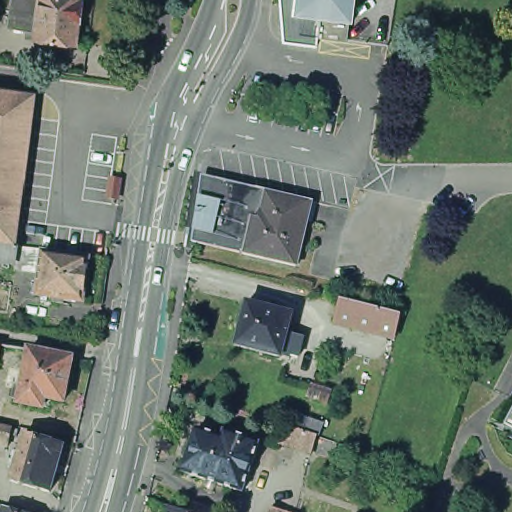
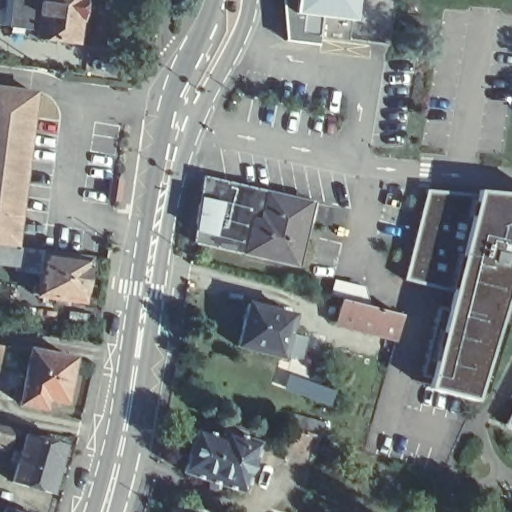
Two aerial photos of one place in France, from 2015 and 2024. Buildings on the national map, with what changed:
unchanged [(71,20),(67,43),(25,37),(26,29),(17,27),(19,19),(12,18),(13,11),(20,12),(21,0),(74,0),(72,21),(71,20)]
unchanged [(285,40),(282,0),(357,0),(355,18),(357,18),(357,21),(355,20),(351,20),(347,41),(319,36),(317,45),(285,40)]
unchanged [(1,88),(2,88),(4,89),(4,90),(26,93),(26,91),(27,91),(30,91),(29,95),(28,95),(26,115),(27,115),(27,117),(26,117),(23,136),(24,136),(24,138),(23,138),(21,158),(22,158),(21,160),(19,178),(19,179),(19,181),(17,181),(16,200),(16,203),(15,203),(13,222),(14,222),(13,225),(12,225),(10,243),(11,243),(11,246),(14,247),(12,263),(0,261),(0,245),(7,246),(0,244),(0,89),(1,89),(1,88)]
unchanged [(253,214),(244,253),(197,242),(206,188),(208,174),(221,177),(267,188),(260,216),(253,214)]
unchanged [(118,200),(109,199),(112,179),(121,180),(118,200)]
unchanged [(244,253),(253,214),(260,216),(267,188),(305,198),(301,217),(308,219),(297,266),(244,253)]
new [(477,195),(452,294),(404,281),(426,191),(477,195)]
new [(452,294),(477,195),(477,191),(512,194),(512,281),(475,401),(427,390),(452,294)]
unchanged [(60,303),(61,298),(43,295),(39,294),(40,285),(45,285),(46,273),(49,253),(95,259),(89,301),(71,299),(70,305),(60,303)]
unchanged [(292,352),(277,349),(276,352),(232,341),(242,300),(287,311),(282,329),(297,333),(292,352)]
unchanged [(392,341),(376,337),(362,333),(336,326),(341,305),(368,312),(381,315),(397,320),(395,328),(392,341)]
unchanged [(0,344),(5,345),(2,360),(0,360),(0,344)]
unchanged [(47,393),(45,403),(19,398),(30,344),(74,353),(65,397),(47,393)]
unchanged [(507,419),(512,410),(512,421),(507,419)]
unchanged [(311,453),(282,443),(287,425),(289,426),(294,414),(307,419),(304,431),(317,436),(312,454),(311,453)]
unchanged [(22,438),(16,436),(13,447),(0,444),(0,425),(17,429),(24,430),(22,438)]
unchanged [(183,468),(197,425),(222,433),(225,427),(260,439),(242,489),(183,468)]
unchanged [(17,482),(30,434),(69,445),(56,493),(17,482)]
unchanged [(281,512),(269,512),(271,508),(281,512)]
unchanged [(172,510),(179,512),(171,512),(172,510)]

